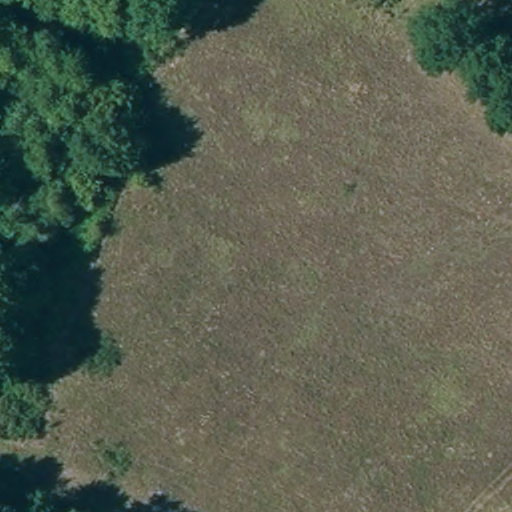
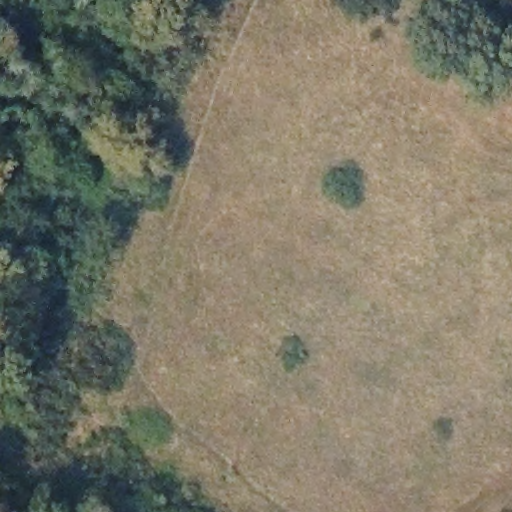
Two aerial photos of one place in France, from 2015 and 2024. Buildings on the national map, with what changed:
[]

